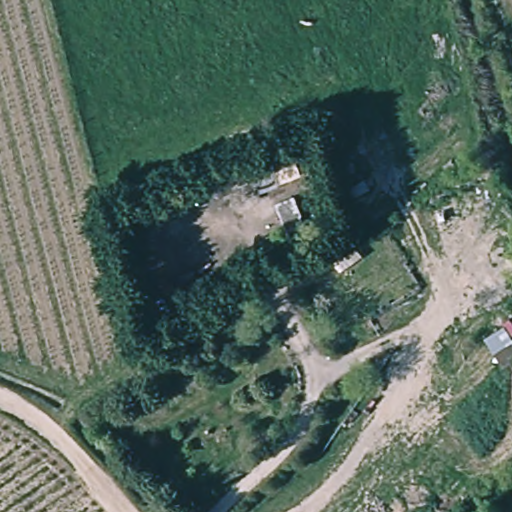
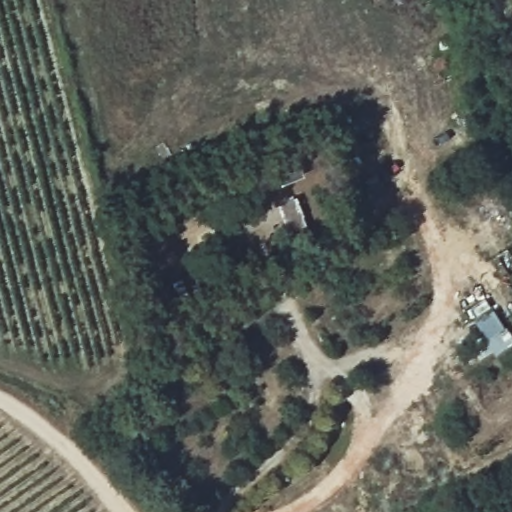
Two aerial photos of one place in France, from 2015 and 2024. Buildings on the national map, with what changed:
unchanged [(293,166),(299,164),(303,174),(282,181),(278,171),(259,179),(253,163),(287,150),(293,166)]
unchanged [(304,216),(286,223),(278,204),(296,196),(304,216)]
unchanged [(512,341),(512,368),(504,372),(495,358),(487,344),(506,331),(512,341)]

